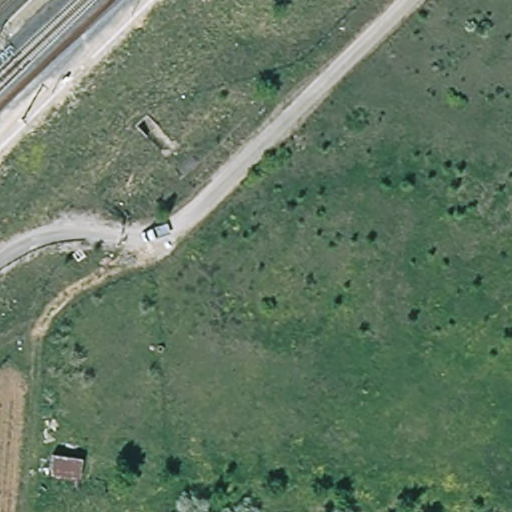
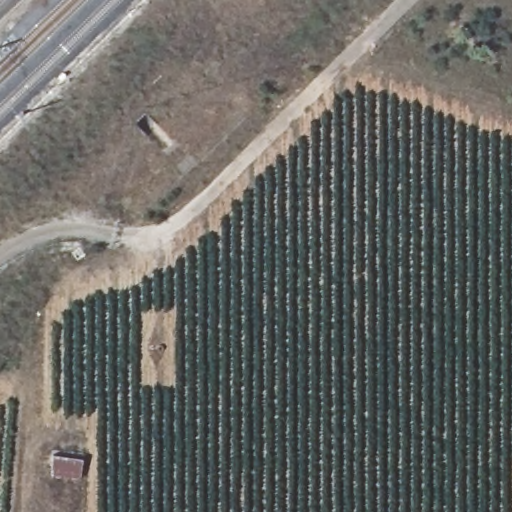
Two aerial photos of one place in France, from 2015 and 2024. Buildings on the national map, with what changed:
unchanged [(78,459),(77,479),(48,475),(51,457),(78,459)]

